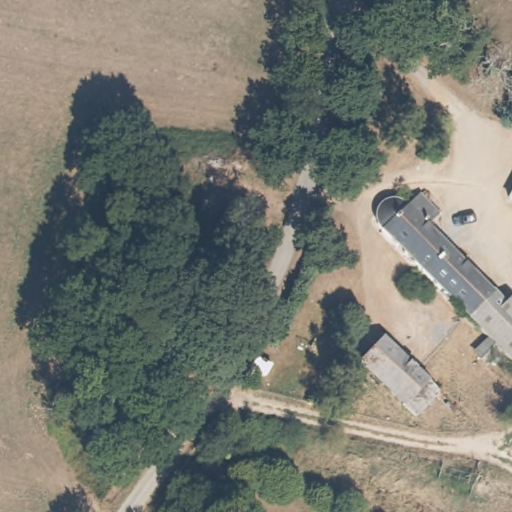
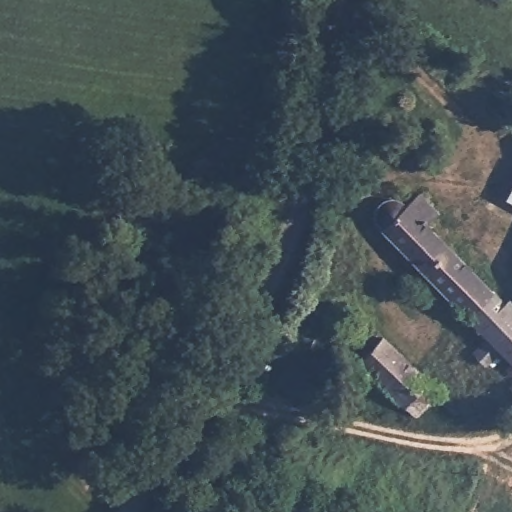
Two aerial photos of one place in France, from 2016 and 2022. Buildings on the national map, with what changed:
unchanged [(506,200),(512,189),(512,203),(506,200)]
unchanged [(372,216),(378,200),(393,191),(406,204),(419,191),(438,211),(428,224),(512,313),(512,362),(511,363),(372,216)]
unchanged [(386,335),(440,388),(415,414),(360,362),(364,359),(386,335)]
unchanged [(243,362),(250,350),(255,353),(261,356),(255,370),(250,366),(243,362)]
unchanged [(511,363),(512,362),(512,364),(511,363)]

